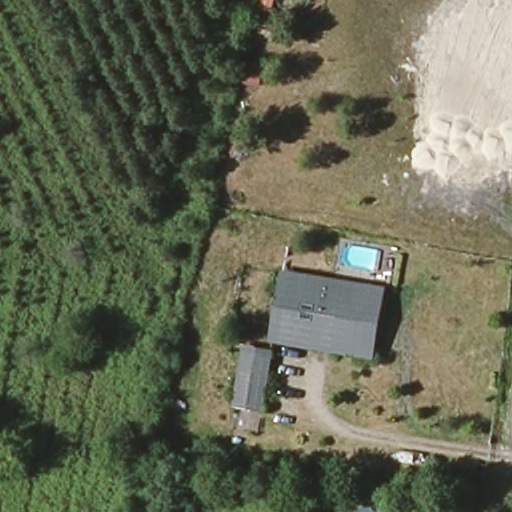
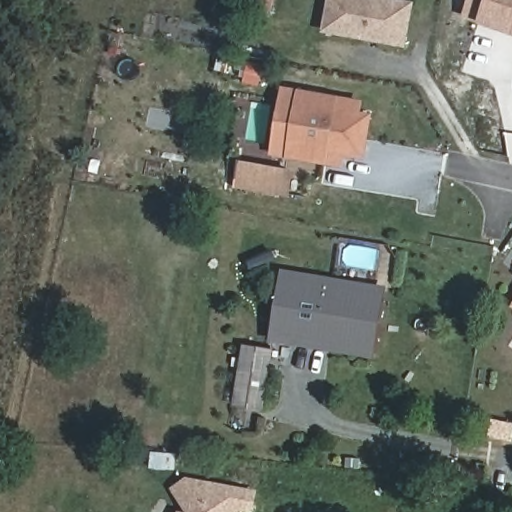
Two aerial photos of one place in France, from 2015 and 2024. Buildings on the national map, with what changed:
new [(407,48),(323,33),(328,0),(406,0),(415,1),(407,48)]
new [(465,18),(471,0),(512,0),(512,34),(479,22),(465,18)]
new [(282,87),(365,101),(363,112),(375,114),(367,160),(348,157),(346,168),(271,154),(282,87)]
new [(291,197),(236,188),(239,160),(295,169),(291,197)]
unchanged [(356,348),(275,335),(284,274),(365,286),(356,348)]
unchanged [(375,351),(356,348),(365,286),(385,289),(375,351)]
unchanged [(258,407),(233,403),(241,350),(266,354),(258,407)]
new [(240,508),(240,512),(194,512),(177,490),(189,481),(255,492),(252,509),(240,508)]

